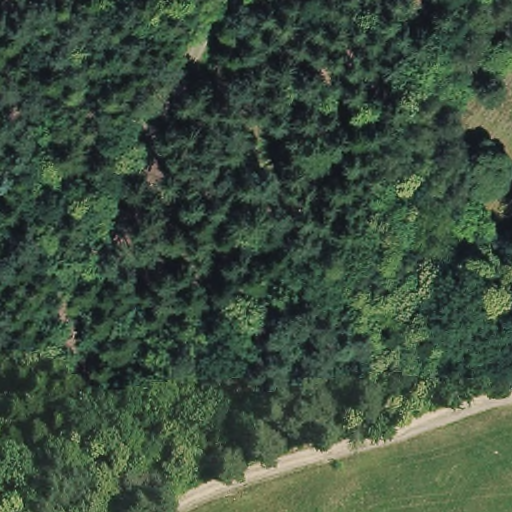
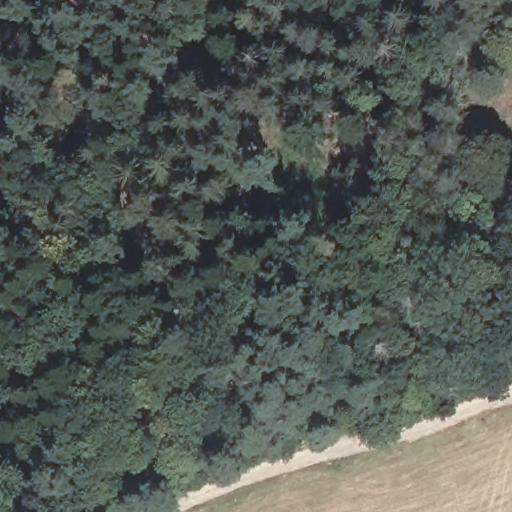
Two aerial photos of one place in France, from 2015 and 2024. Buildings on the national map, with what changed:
[]

